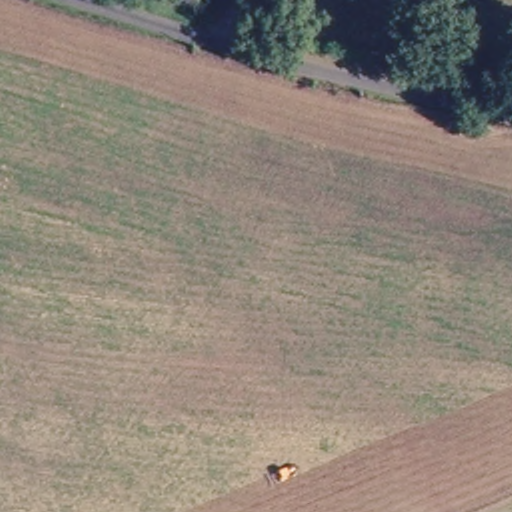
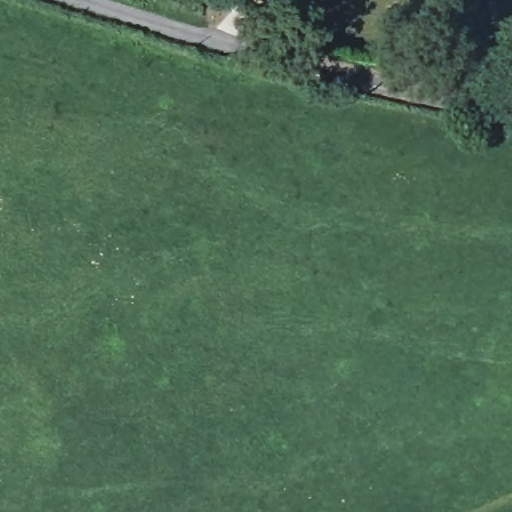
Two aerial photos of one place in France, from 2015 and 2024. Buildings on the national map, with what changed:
[]

